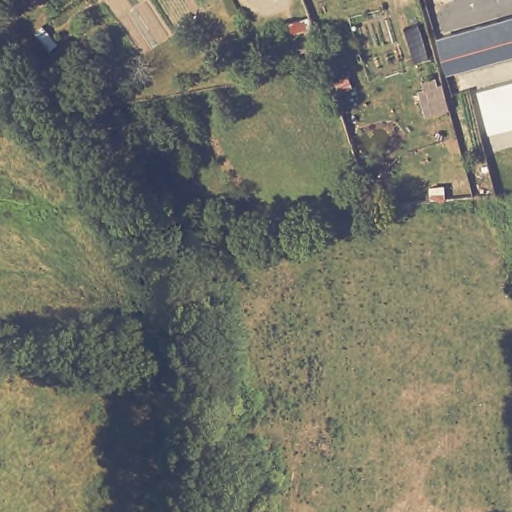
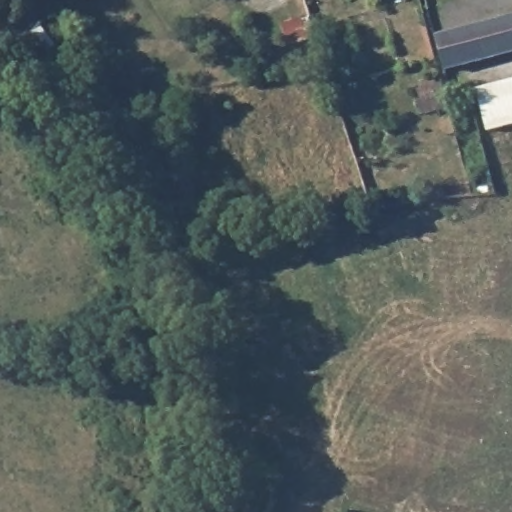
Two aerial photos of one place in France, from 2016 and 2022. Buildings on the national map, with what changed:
unchanged [(512,13),(512,54),(447,72),(437,35),(512,13)]
unchanged [(286,45),(279,24),(310,15),(317,37),(286,45)]
unchanged [(512,79),(512,127),(490,133),(477,90),(512,79)]

